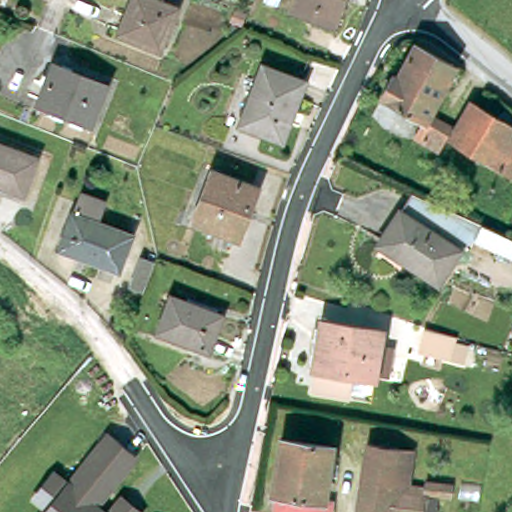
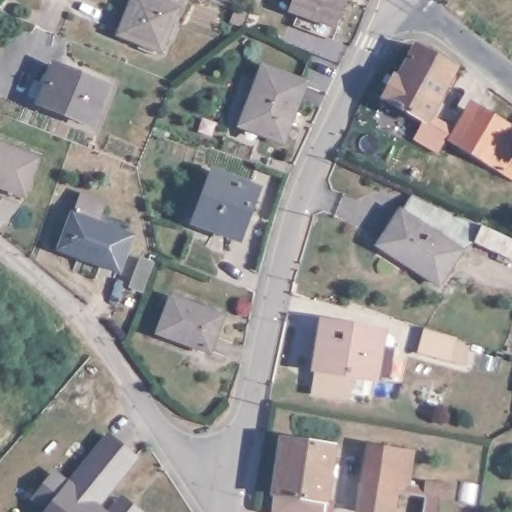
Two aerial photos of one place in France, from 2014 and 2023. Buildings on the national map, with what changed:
unchanged [(138,0),(141,0),(179,15),(163,55),(123,39),(138,0)]
unchanged [(293,15),(298,0),(340,0),(330,29),(293,15)]
unchanged [(435,147),(414,137),(421,121),(375,97),(386,74),(395,78),(412,38),(451,59),(427,109),(449,119),(435,147)]
unchanged [(105,90),(92,123),(42,105),(54,71),(105,90)]
unchanged [(297,106),(292,105),(286,123),(290,124),(282,146),(240,130),(262,71),(304,87),(297,106)]
unchanged [(512,129),(512,179),(455,148),(475,110),(512,129)]
unchanged [(39,160),(27,192),(10,187),(10,184),(0,180),(0,145),(39,160)]
unchanged [(248,212),(242,210),(231,236),(195,223),(212,176),(255,191),(248,212)]
unchanged [(95,227),(129,239),(117,274),(98,267),(100,264),(80,257),(77,260),(59,253),(77,198),(102,207),(95,227)]
unchanged [(380,245),(404,211),(461,250),(437,285),(380,245)]
unchanged [(484,232),(512,246),(512,261),(477,245),(484,232)]
unchanged [(212,357),(162,340),(175,302),(225,320),(212,357)]
unchanged [(325,324),(383,333),(372,405),(315,396),(325,324)]
unchanged [(313,445),(315,429),(334,432),(331,448),(329,462),(339,464),(336,479),(325,477),(321,502),(301,499),(277,495),(285,440),(313,445)]
unchanged [(138,458),(100,505),(107,510),(120,494),(139,512),(44,512),(45,510),(29,498),(54,467),(68,479),(106,431),(138,458)]
unchanged [(365,451),(407,458),(404,481),(361,474),(365,451)]
unchanged [(443,504),(420,501),(418,512),(355,512),(361,474),(404,481),(445,488),(443,504)]
unchanged [(301,499),(321,502),(320,507),(329,509),(328,512),(274,512),(277,495),(301,499)]

